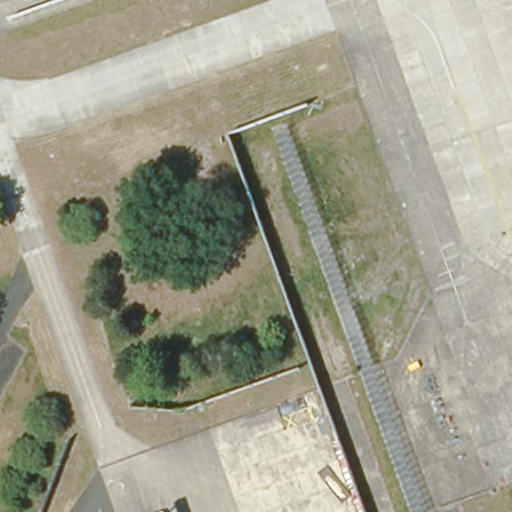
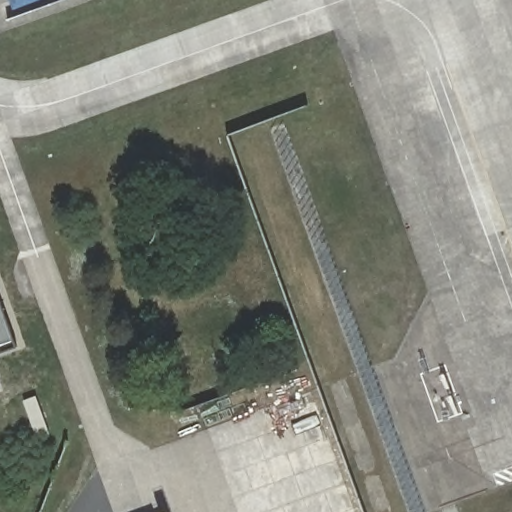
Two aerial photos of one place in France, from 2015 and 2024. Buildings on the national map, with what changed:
new [(0,343),(0,308),(11,339),(0,343)]

